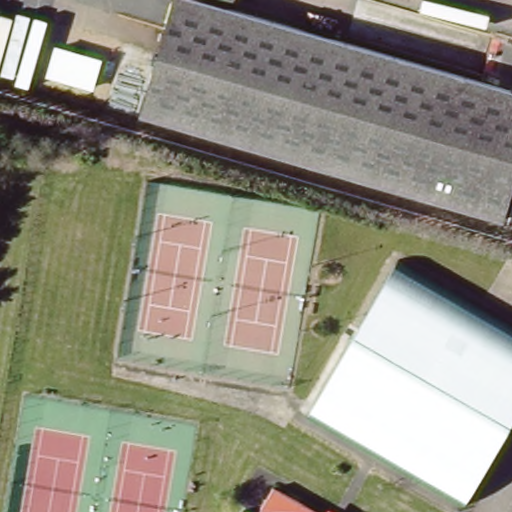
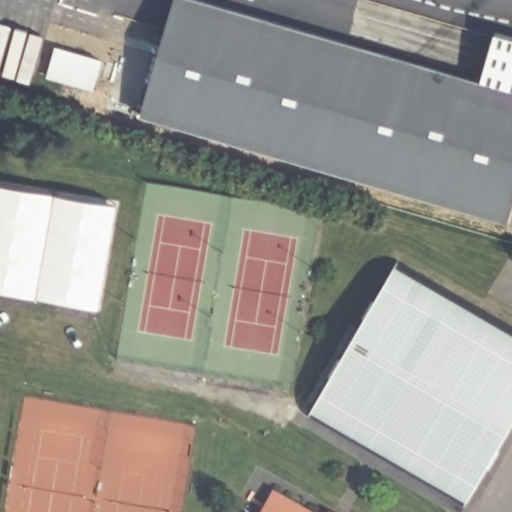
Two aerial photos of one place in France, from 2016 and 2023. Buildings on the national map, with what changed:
unchanged [(364,12),(460,42),(452,66),(512,84),(512,184),(504,211),(145,107),(175,0),(224,0),(356,39),(364,12)]
unchanged [(75,47),(120,61),(112,87),(67,74),(75,47)]
new [(119,197),(103,305),(0,290),(0,180),(119,197)]
unchanged [(512,334),(512,427),(469,501),(314,408),(395,266),(512,334)]
unchanged [(259,512),(270,492),(310,512),(259,512)]
unchanged [(330,512),(325,512),(326,510),(330,512)]

